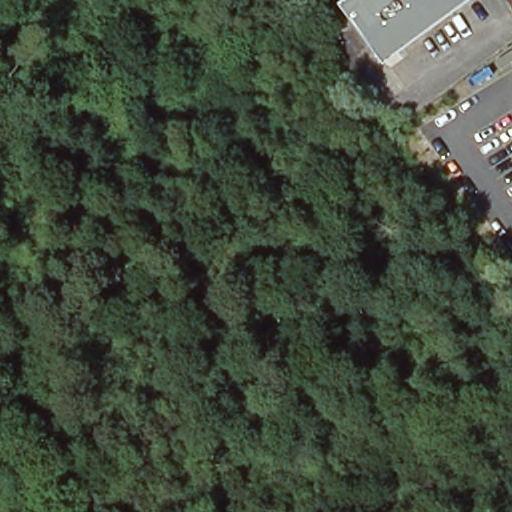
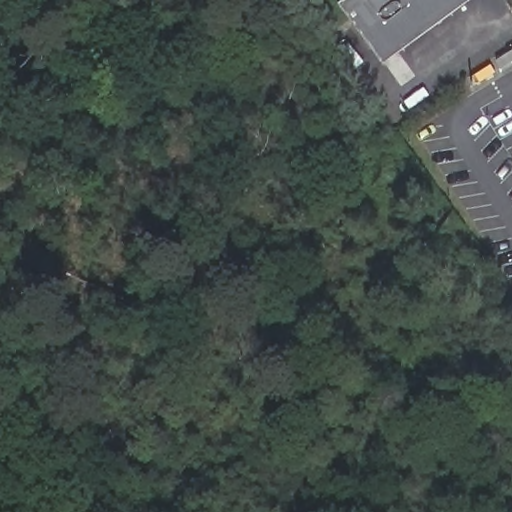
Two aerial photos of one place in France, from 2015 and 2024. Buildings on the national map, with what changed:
unchanged [(338,3),(343,0),(456,0),(465,0),(455,8),(381,61),(338,3)]

